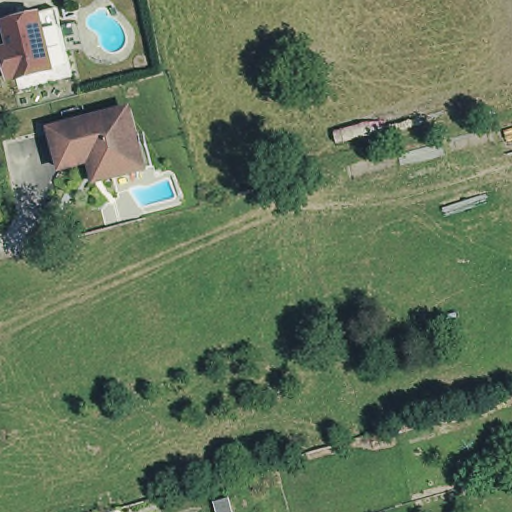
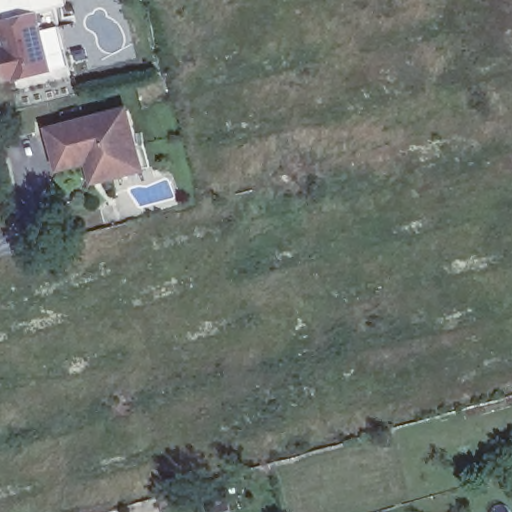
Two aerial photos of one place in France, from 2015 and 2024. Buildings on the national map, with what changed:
unchanged [(3,66),(0,67),(0,10),(26,3),(38,0),(44,0),(49,20),(60,65),(7,78),(4,68),(3,66)]
unchanged [(53,123),(110,108),(111,110),(128,106),(133,105),(142,143),(147,162),(137,165),(108,172),(98,174),(93,155),(63,163),(53,123)]

